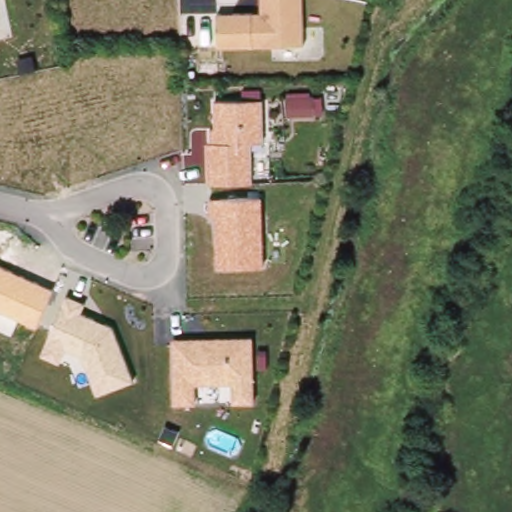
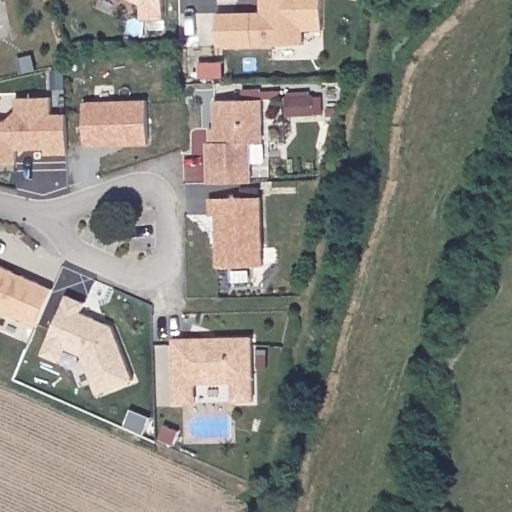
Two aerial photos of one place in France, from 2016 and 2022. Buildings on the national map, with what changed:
new [(163,19),(141,20),(141,0),(163,0),(163,19)]
unchanged [(218,47),(217,15),(260,15),(260,0),(302,0),(304,46),(218,47)]
new [(16,111),(15,98),(51,97),(51,115),(66,114),(67,154),(45,155),(45,149),(16,150),(16,163),(0,164),(0,122),(6,121),(16,111)]
unchanged [(206,183),(206,145),(208,145),(207,127),(213,127),(213,102),(262,100),(263,143),(250,143),(251,183),(206,183)]
new [(147,101),(148,145),(85,146),(83,103),(147,101)]
unchanged [(216,217),(212,217),(212,198),(261,197),(265,265),(219,267),(216,217)]
unchanged [(0,266),(52,289),(37,325),(0,310),(0,266)]
unchanged [(80,355),(66,349),(59,364),(41,355),(65,295),(87,303),(82,314),(115,328),(133,382),(95,396),(80,355)]
unchanged [(229,383),(194,384),(195,404),(172,405),(171,339),(253,337),(253,403),(231,404),(229,383)]

